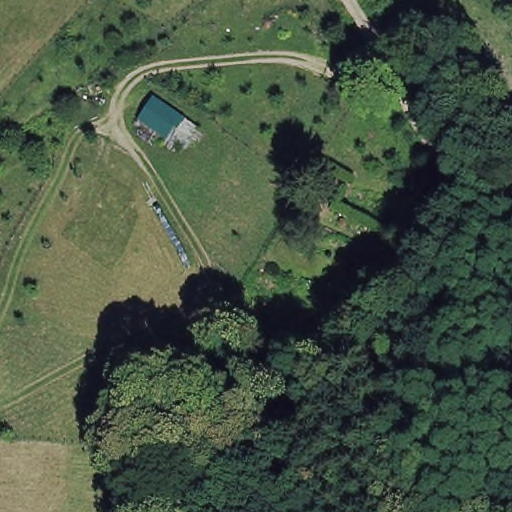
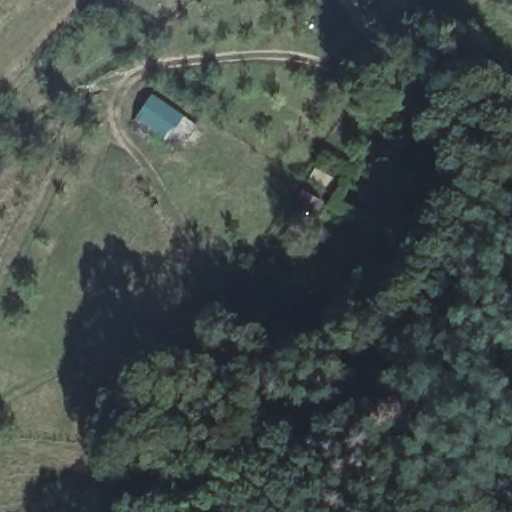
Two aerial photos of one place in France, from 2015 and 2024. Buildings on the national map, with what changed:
unchanged [(182,152),(136,118),(153,95),(200,130),(182,152)]

